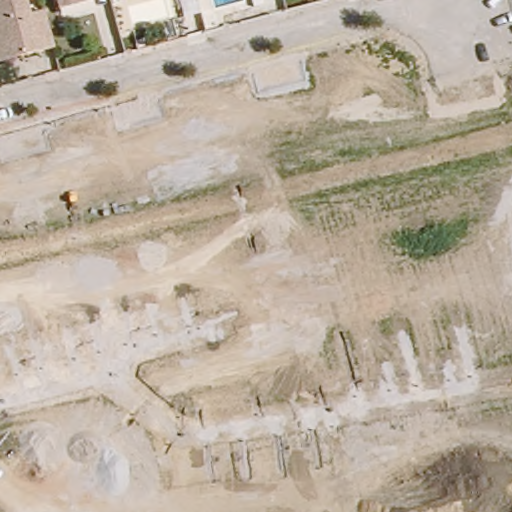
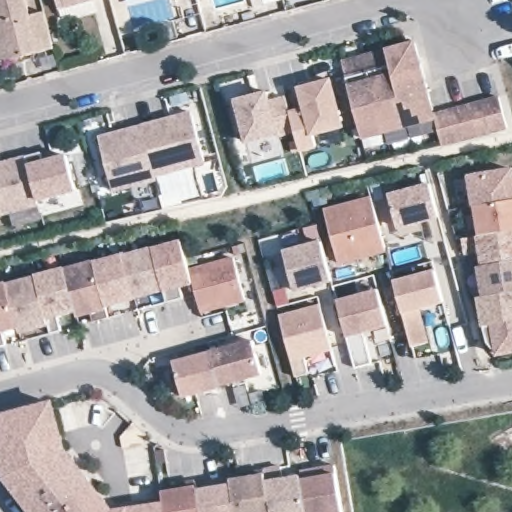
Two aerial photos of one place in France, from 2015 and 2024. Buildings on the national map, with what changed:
unchanged [(28,20),(42,16),(51,51),(19,58),(0,62),(0,0),(22,0),(28,20)]
unchanged [(56,6),(54,2),(54,0),(79,0),(56,6)]
new [(508,129),(442,145),(437,121),(363,141),(348,84),(347,78),(342,60),(385,48),(417,39),(435,110),(498,95),(508,129)]
new [(345,129),(314,138),(318,149),(301,154),(295,131),(279,135),(245,144),(233,98),(268,90),(269,96),(285,94),(290,110),(302,104),(298,86),(332,77),(345,129)]
new [(205,164),(156,177),(156,180),(114,192),(98,136),(191,111),(205,164)]
new [(66,153),(77,191),(40,202),(41,206),(0,216),(0,161),(41,150),(44,158),(66,153)]
new [(512,170),(512,352),(499,355),(488,343),(484,327),(479,297),(484,296),(479,267),(483,266),(481,251),(465,253),(462,239),(481,236),(475,207),(470,177),(512,170)]
new [(440,217),(398,229),(388,194),(430,182),(440,217)]
new [(387,251),(339,264),(324,208),(370,195),(387,251)]
new [(5,282),(180,239),(188,265),(233,254),(245,301),(201,312),(194,285),(181,289),(184,298),(167,302),(165,291),(135,298),(136,300),(107,308),(109,316),(94,321),(93,313),(78,317),(77,312),(59,318),(61,330),(51,333),(50,327),(20,336),(18,330),(4,334),(7,345),(0,347),(0,282),(5,281),(5,282)]
new [(334,281),(296,292),(283,250),(322,239),(334,281)]
new [(445,303),(424,309),(430,341),(412,346),(403,315),(393,280),(435,268),(445,303)]
new [(388,327),(365,334),(372,364),(355,368),(347,337),(336,299),(378,288),(388,327)]
new [(334,350),(304,359),(308,374),(296,377),(279,315),(321,304),(334,350)]
new [(262,376),(184,400),(173,361),(253,338),(262,376)]
new [(115,509),(126,506),(125,505),(164,501),(162,490),(180,487),(178,481),(195,478),(196,484),(197,489),(231,484),(230,479),(262,473),(259,468),(281,464),(284,477),(300,473),(299,469),(335,463),(342,512),(31,512),(3,478),(0,467),(0,413),(53,399),(67,449),(115,509)]

